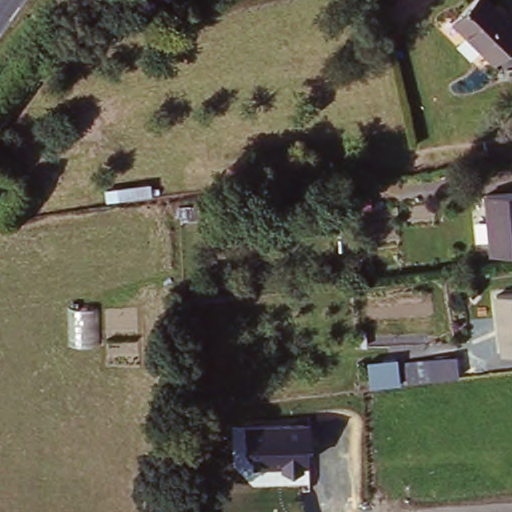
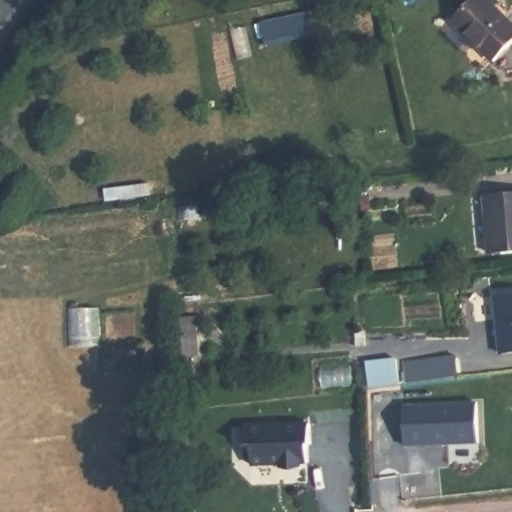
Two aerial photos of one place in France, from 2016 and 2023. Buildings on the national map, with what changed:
unchanged [(484,0),(512,31),(512,42),(490,64),(451,24),(472,0),(484,0)]
unchanged [(512,252),(494,254),(489,198),(512,195),(512,252)]
unchanged [(512,296),(512,352),(503,353),(497,298),(512,296)]
unchanged [(457,356),(460,376),(409,383),(406,363),(457,356)]
unchanged [(398,359),(401,384),(371,388),(368,363),(398,359)]
new [(480,444),(407,447),(404,405),(478,403),(480,444)]
unchanged [(250,468),(247,423),(308,423),(308,462),(250,468)]

